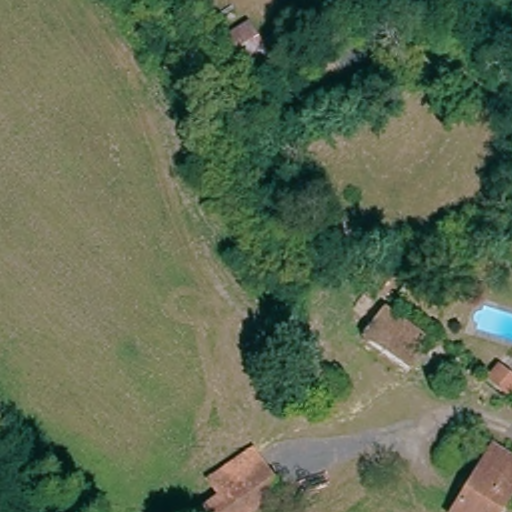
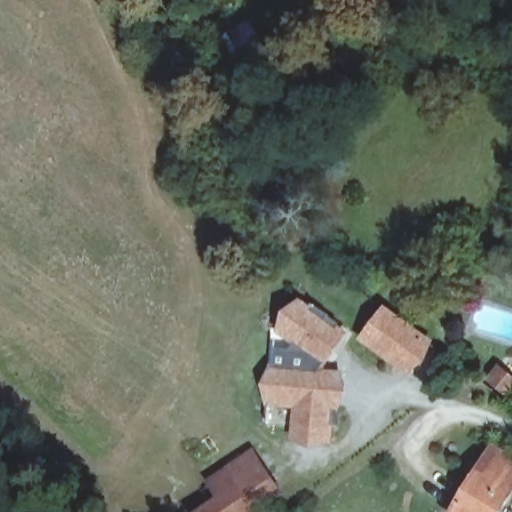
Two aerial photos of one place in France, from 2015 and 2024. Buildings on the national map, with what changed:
unchanged [(265,53),(242,66),(222,31),(242,16),(265,53)]
new [(348,334),(323,368),(342,369),(347,396),(341,410),(334,411),(332,443),(310,449),(290,439),(293,407),(267,404),(262,385),(272,366),(273,347),(292,349),(293,343),(275,332),(300,298),(348,334)]
unchanged [(400,366),(357,334),(360,331),(378,306),(420,338),(400,366)]
unchanged [(512,380),(512,385),(505,394),(485,379),(495,367),(512,380)]
demolished [(457,436),(446,457),(432,448),(443,428),(457,436)]
unchanged [(490,443),(512,459),(512,477),(488,512),(446,512),(490,443)]
unchanged [(261,512),(193,512),(247,465),(277,498),(261,512)]

